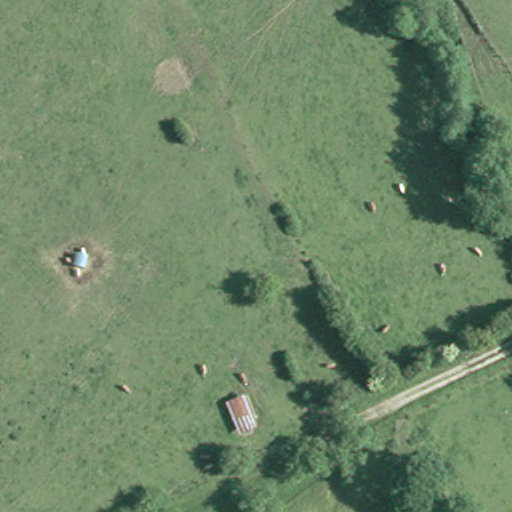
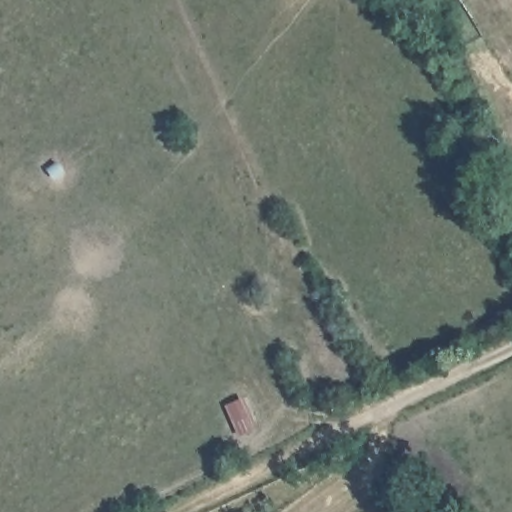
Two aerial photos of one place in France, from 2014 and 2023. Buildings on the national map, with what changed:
unchanged [(241,439),(227,403),(251,396),(260,432),(241,439)]

